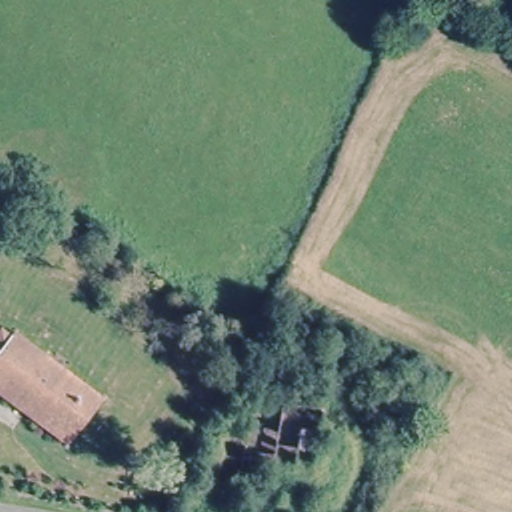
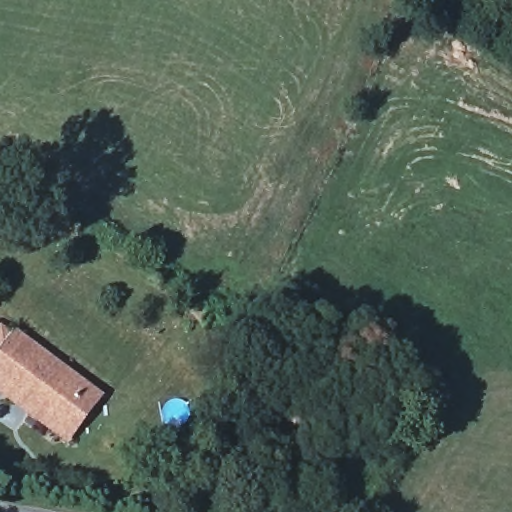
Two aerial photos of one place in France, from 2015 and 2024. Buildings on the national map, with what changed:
unchanged [(60,434),(32,413),(0,390),(0,327),(103,400),(88,423),(72,443),(60,434)]
unchanged [(309,467),(247,460),(242,487),(212,485),(220,434),(247,435),(255,400),(317,408),(309,467)]

